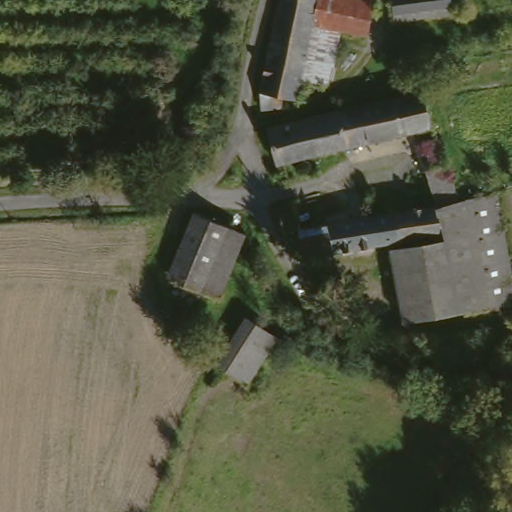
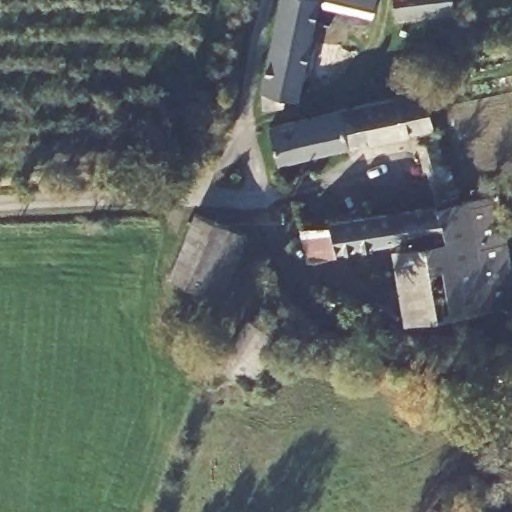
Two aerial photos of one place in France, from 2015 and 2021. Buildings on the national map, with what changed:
unchanged [(317,30),(303,85),(299,105),(285,102),(286,114),(265,116),(265,113),(262,98),(284,0),(377,0),(368,41),(344,36),(317,30)]
unchanged [(398,22),(396,0),(453,0),(455,15),(398,22)]
unchanged [(317,30),(344,36),(337,70),(335,70),(331,90),(303,85),(317,30)]
unchanged [(436,132),(347,153),(338,117),(426,98),(436,132)]
unchanged [(347,153),(278,171),(270,135),(338,117),(347,153)]
unchanged [(370,222),(437,212),(428,177),(426,177),(418,150),(440,144),(447,170),(451,169),(462,205),(500,200),(512,267),(512,308),(409,327),(395,254),(447,245),(446,242),(412,247),(411,242),(308,263),(301,234),(287,237),(284,227),(298,224),(295,207),(361,189),(370,222)]
unchanged [(245,234),(227,275),(217,296),(167,275),(194,213),(226,226),(245,234)]
unchanged [(244,316),(275,336),(246,383),(215,363),(244,316)]

